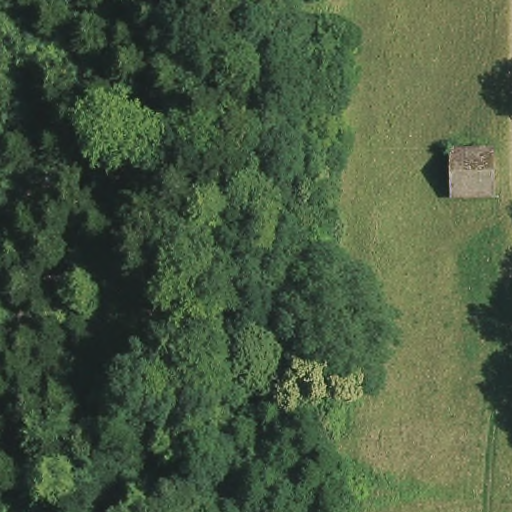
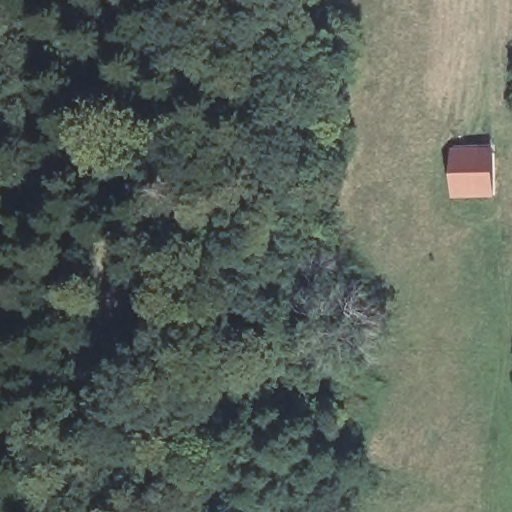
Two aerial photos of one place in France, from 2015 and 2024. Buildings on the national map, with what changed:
unchanged [(451,157),(494,156),(494,198),(451,198),(451,157)]

